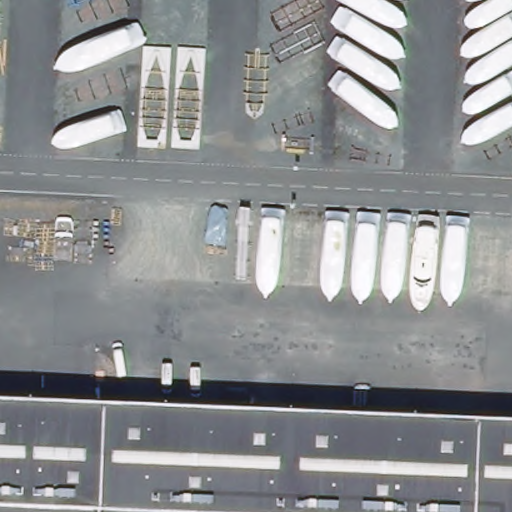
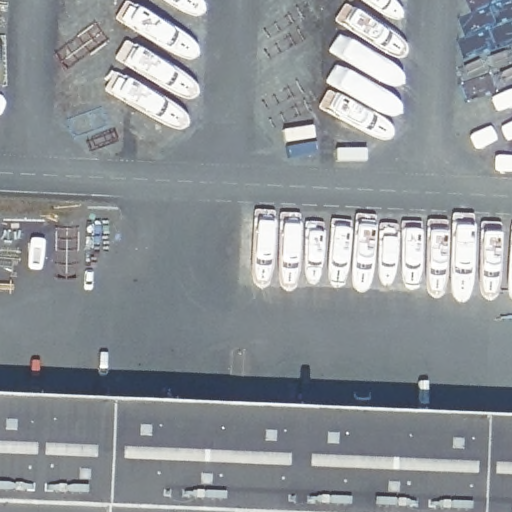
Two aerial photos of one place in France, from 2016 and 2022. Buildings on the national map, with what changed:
unchanged [(512,512),(0,512),(0,395),(512,416),(512,512)]

